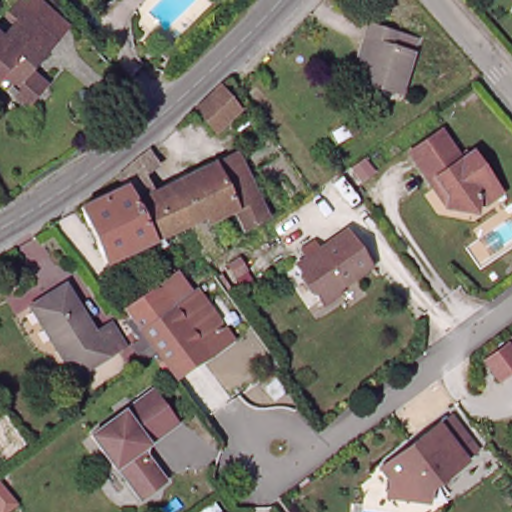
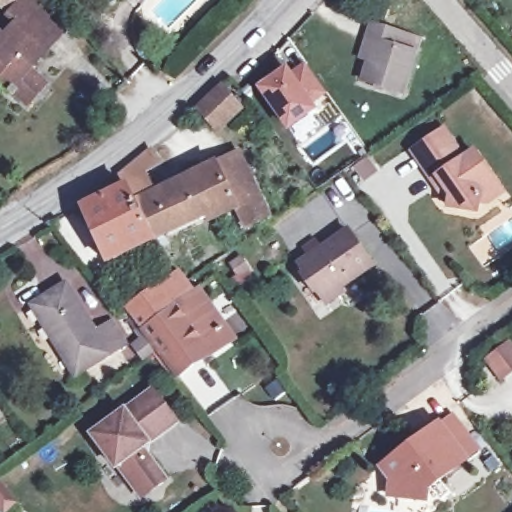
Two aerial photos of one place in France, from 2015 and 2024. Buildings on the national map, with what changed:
unchanged [(2,32),(25,6),(35,14),(46,0),(67,20),(55,32),(25,66),(42,80),(25,100),(12,90),(10,91),(5,87),(0,92),(0,31),(2,32)]
unchanged [(415,39),(399,95),(357,82),(363,60),(357,58),(362,39),(367,25),(415,39)]
new [(287,69),(290,75),(307,64),(325,90),(310,101),(315,108),(289,125),(261,86),(287,69)]
unchanged [(223,86),(242,109),(219,131),(199,108),(223,86)]
unchanged [(460,155),(471,148),(492,178),(478,188),(475,208),(446,204),(447,190),(440,182),(435,185),(410,147),(440,127),(460,155)]
unchanged [(137,161),(150,150),(160,165),(145,175),(155,194),(192,175),(210,216),(155,241),(130,186),(125,188),(120,175),(137,161)]
unchanged [(237,210),(212,222),(210,216),(192,175),(239,151),(270,219),(257,224),(247,230),(237,210)]
new [(367,159),(375,171),(364,180),(355,167),(367,159)]
unchanged [(109,263),(84,207),(125,188),(130,186),(155,241),(109,263)]
unchanged [(324,301),(299,265),(347,231),(372,267),(324,301)]
unchanged [(207,361),(192,367),(173,383),(153,356),(137,334),(122,314),(137,303),(142,310),(179,284),(182,287),(190,296),(225,348),(207,361)]
unchanged [(55,342),(33,306),(67,285),(97,334),(115,323),(127,345),(79,375),(57,340),(55,342)]
unchanged [(512,347),(512,372),(502,380),(490,362),(511,346),(512,347)]
unchanged [(140,397),(146,405),(156,397),(174,422),(139,447),(162,479),(137,496),(115,465),(112,466),(89,435),(140,397)]
unchanged [(405,499),(382,496),(385,480),(375,467),(392,455),(402,455),(409,449),(407,445),(435,423),(449,413),(477,450),(462,461),(423,490),(422,501),(405,499)]

